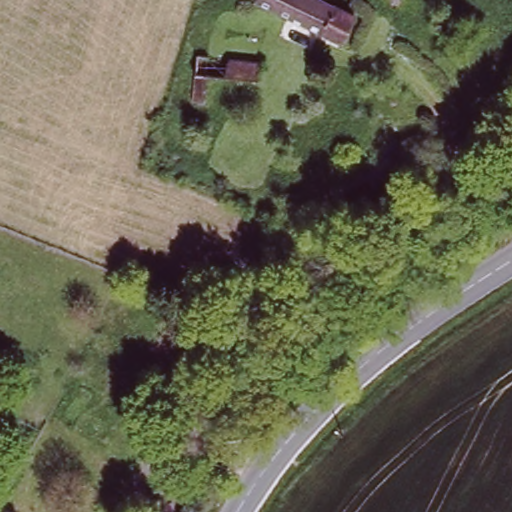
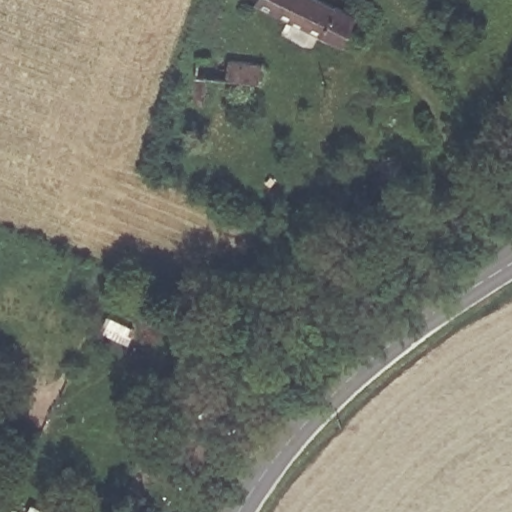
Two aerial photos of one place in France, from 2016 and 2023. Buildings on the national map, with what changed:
unchanged [(353,15),(345,30),(279,0),(328,0),(353,15)]
unchanged [(263,59),(260,84),(212,79),(210,92),(192,91),(197,51),(263,59)]

